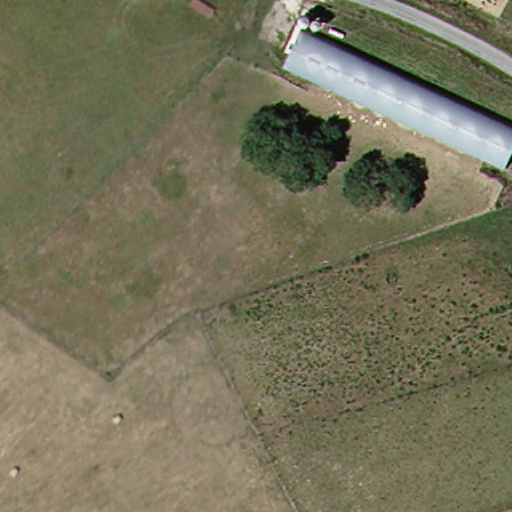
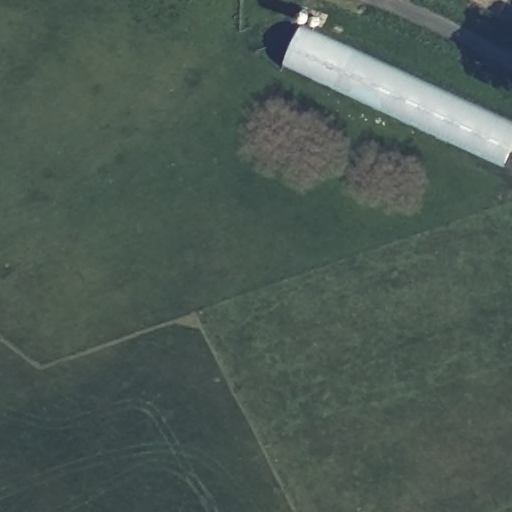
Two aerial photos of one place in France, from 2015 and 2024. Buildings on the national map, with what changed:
unchanged [(512,129),(495,169),(274,68),(294,29),(512,128),(512,129)]

